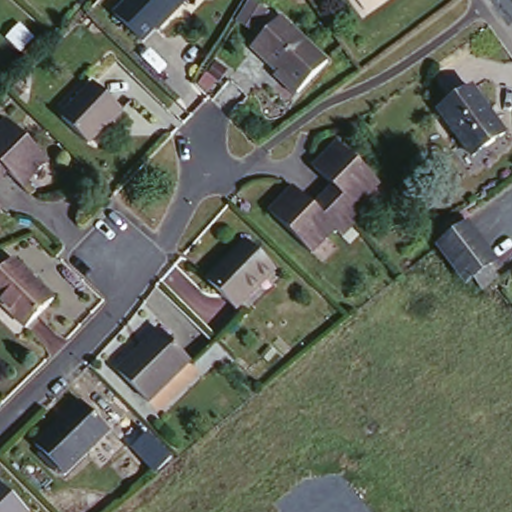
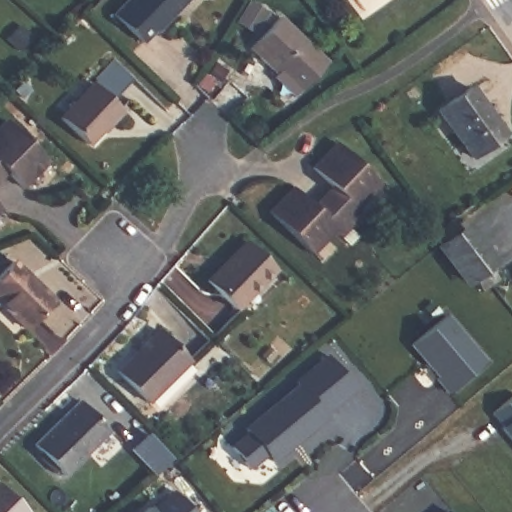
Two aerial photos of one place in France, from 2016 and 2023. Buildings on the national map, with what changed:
unchanged [(142,44),(114,15),(128,0),(188,0),(178,10),(156,32),(154,30),(142,44)]
unchanged [(272,76),(277,72),(251,46),(282,14),(328,60),(297,91),(292,96),(272,76)]
unchanged [(118,106),(85,141),(57,116),(91,81),(118,106)]
unchanged [(505,132),(472,155),(440,109),(473,85),(505,132)]
unchanged [(313,166),(337,142),(378,184),(355,207),(362,214),(340,235),(333,229),(309,251),(268,210),(293,186),(311,205),(332,185),(313,166)]
unchanged [(479,295),(471,285),(466,288),(437,250),(441,247),(432,235),(445,225),(454,238),(458,235),(487,272),(483,275),(492,285),(487,288),(479,295)]
unchanged [(272,266),(234,305),(204,275),(242,237),(272,266)]
unchanged [(26,327),(0,303),(0,275),(15,260),(54,298),(26,327)]
new [(447,317),(486,363),(449,394),(437,380),(440,378),(412,346),(447,317)]
unchanged [(188,358),(147,400),(117,370),(157,328),(188,358)]
new [(277,463),(271,455),(254,470),(236,448),(254,434),(250,430),(303,386),(301,383),(333,356),(360,390),(329,415),(332,418),(302,442),(297,447),(277,463)]
new [(512,400),(512,438),(505,430),(507,428),(496,415),(512,400)]
unchanged [(111,432),(66,477),(37,447),(81,402),(111,432)]
new [(152,436),(174,460),(157,475),(136,451),(152,436)]
unchanged [(0,487),(25,512),(0,512),(0,487)]
new [(179,494),(194,512),(158,512),(179,494)]
new [(153,510),(155,512),(151,512),(153,510)]

